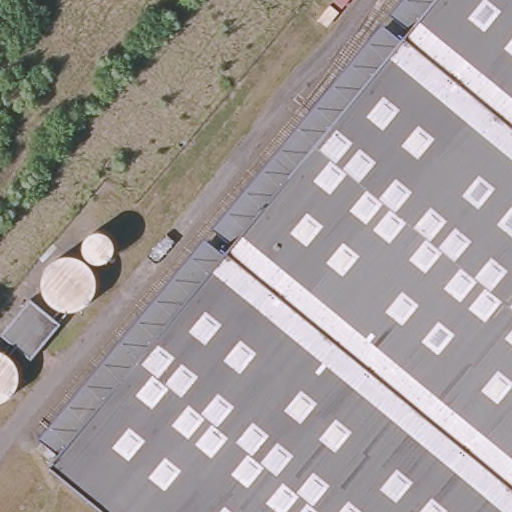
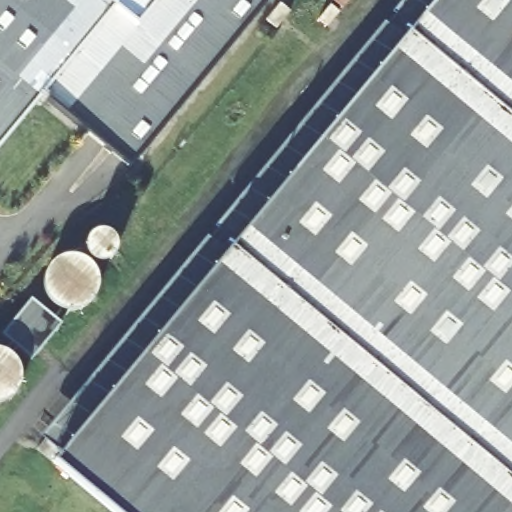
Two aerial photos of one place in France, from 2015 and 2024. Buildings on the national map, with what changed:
new [(29,93),(0,128),(0,0),(262,0),(127,164),(29,93)]
unchanged [(512,0),(512,512),(112,512),(52,463),(435,0),(512,0)]
unchanged [(348,0),(342,8),(333,0),(348,0)]
new [(280,4),(290,11),(276,28),(267,20),(280,4)]
unchanged [(339,11),(327,26),(318,19),(330,5),(339,11)]
unchanged [(95,232),(96,231),(97,231),(98,231),(98,230),(100,230),(102,230),(103,230),(105,231),(106,231),(107,232),(108,232),(108,233),(110,233),(110,234),(111,234),(112,236),(112,237),(113,237),(113,238),(113,239),(114,240),(114,241),(115,242),(115,243),(115,245),(115,246),(114,247),(114,248),(113,249),(113,250),(112,251),(112,252),(111,253),(110,253),(110,254),(109,254),(108,255),(107,256),(106,256),(105,257),(104,257),(103,257),(102,257),(100,257),(98,257),(97,257),(96,256),(95,256),(94,255),(93,255),(92,254),(91,253),(90,252),(90,251),(89,250),(88,249),(88,248),(88,247),(87,246),(87,245),(87,244),(87,243),(87,242),(87,241),(88,240),(88,239),(88,238),(89,237),(90,236),(90,235),(92,234),(92,233),(93,232),(95,232)]
unchanged [(60,254),(62,253),(64,253),(66,252),(68,252),(70,252),(72,252),(75,252),(77,252),(79,253),(81,254),(83,254),(85,255),(87,256),(88,257),(90,259),(92,260),(93,261),(95,263),(96,265),(97,267),(98,268),(100,270),(100,272),(100,274),(101,276),(102,279),(102,281),(102,283),(102,285),(102,287),(101,289),(100,291),(100,293),(99,295),(98,297),(97,299),(96,301),(95,302),(93,304),(92,305),(90,307),(88,308),(87,309),(85,310),(82,311),(80,312),(78,312),(77,313),(74,313),(72,313),(70,313),(68,313),(65,313),(63,312),(62,312),(60,311),(57,310),(56,309),(54,308),(52,306),(50,305),(49,304),(47,302),(47,300),(45,299),(44,297),(43,295),(42,293),(42,291),(42,289),(41,287),(41,284),(40,282),(41,280),(41,278),(42,276),(42,274),(42,272),(43,270),(45,268),(45,266),(47,264),(48,263),(50,261),(51,260),(52,258),(55,257),(57,256),(58,255),(60,254)]
unchanged [(32,360),(2,334),(32,298),(62,324),(32,360)]
unchanged [(0,350),(2,350),(4,351),(5,352),(7,353),(9,354),(10,355),(12,356),(13,357),(15,359),(15,360),(17,362),(17,363),(18,365),(19,367),(20,369),(20,371),(20,372),(20,374),(20,376),(20,378),(20,380),(20,382),(19,385),(18,387),(17,389),(17,391),(15,392),(14,394),(13,395),(12,396),(10,397),(8,399),(7,400),(5,400),(3,401),(2,402),(0,402),(0,349),(0,350)]

